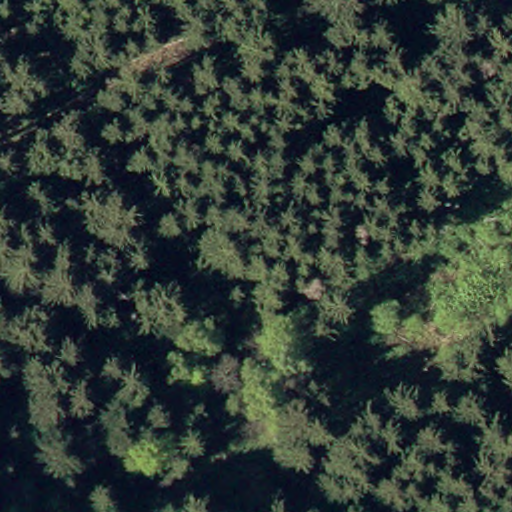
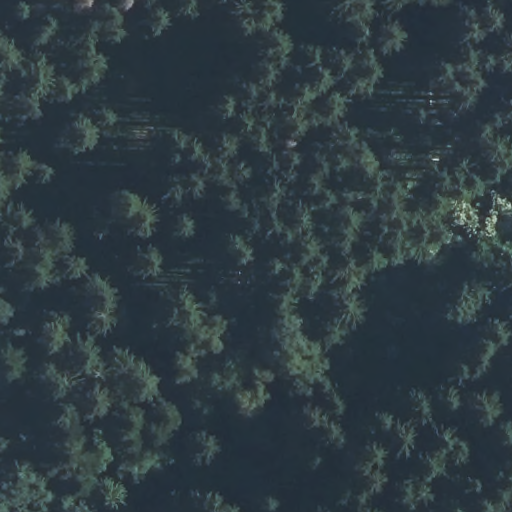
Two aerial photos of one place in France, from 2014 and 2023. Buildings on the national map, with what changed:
unchanged [(413,3),(452,90),(373,112),(343,34),(413,3)]

